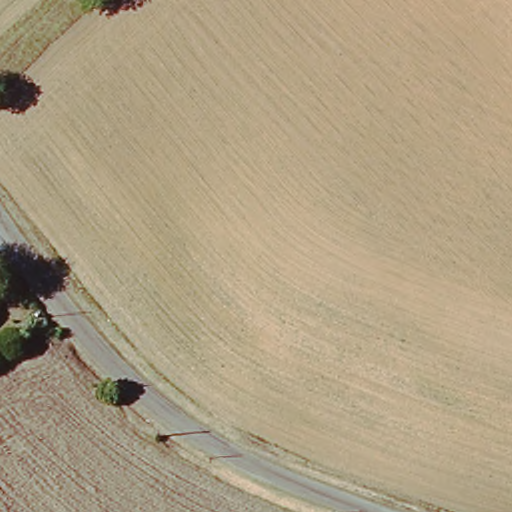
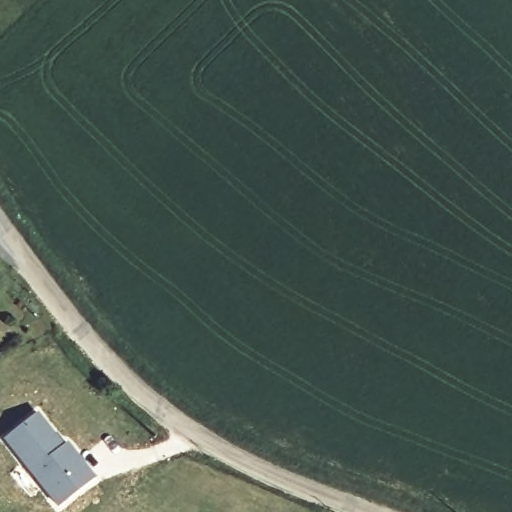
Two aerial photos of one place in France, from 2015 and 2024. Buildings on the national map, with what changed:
new [(38,412),(63,445),(66,442),(96,477),(60,506),(5,439),(38,412)]

